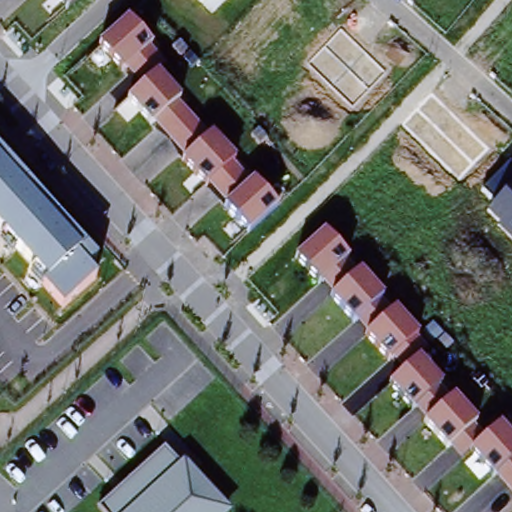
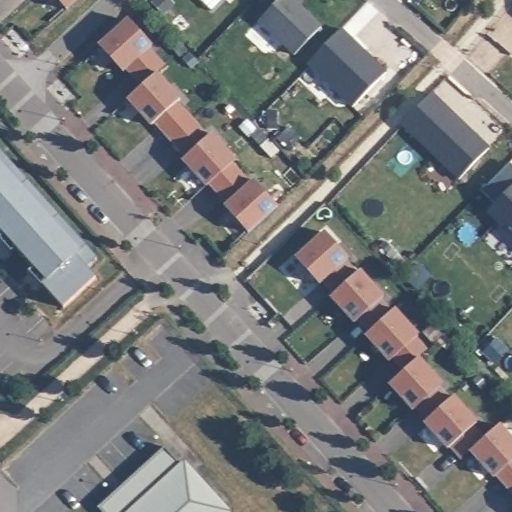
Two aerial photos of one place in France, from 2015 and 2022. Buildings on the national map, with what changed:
unchanged [(58,0),(77,0),(67,10),(58,0)]
new [(282,0),(293,0),(322,27),(294,56),(259,22),(282,0)]
unchanged [(127,19),(151,49),(167,65),(156,74),(279,210),(249,237),(224,205),(227,202),(211,182),(207,185),(183,160),(187,156),(155,120),(149,125),(126,100),(141,86),(126,70),(122,72),(98,45),(127,19)]
new [(351,108),(308,65),(342,30),(387,72),(351,108)]
new [(458,180),(402,127),(434,95),(490,149),(458,180)]
unchanged [(79,259),(98,280),(63,312),(0,241),(0,154),(90,252),(79,259)]
unchanged [(487,212),(496,204),(481,194),(510,164),(512,166),(512,239),(487,212)]
unchanged [(323,232),(417,331),(429,345),(419,355),(477,421),(474,425),(484,436),(500,423),(512,436),(512,495),(472,451),(461,462),(387,385),(401,370),(295,258),(323,232)]
unchanged [(186,470),(188,468),(227,512),(101,512),(101,511),(116,497),(130,485),(167,450),(186,470)]

